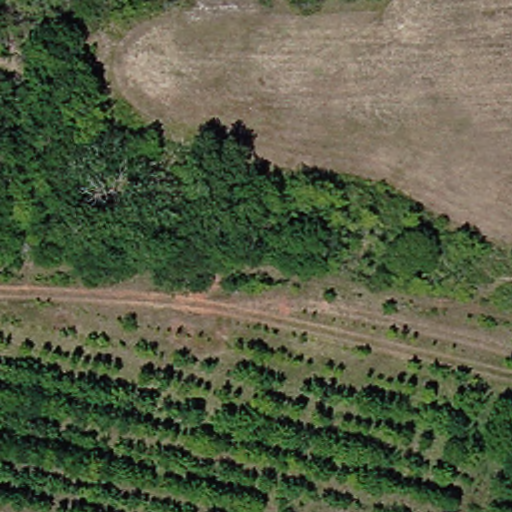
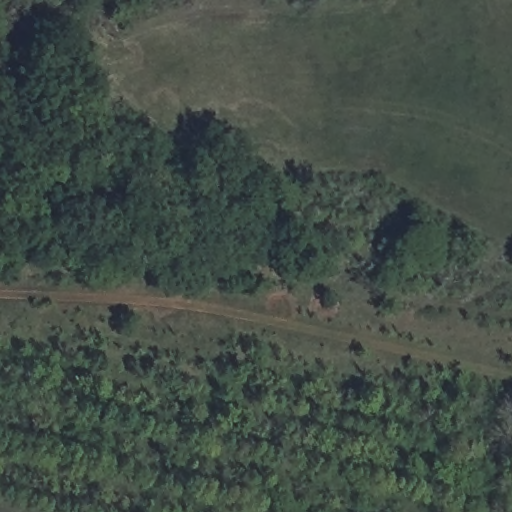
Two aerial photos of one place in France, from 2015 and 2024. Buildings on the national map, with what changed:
[]

